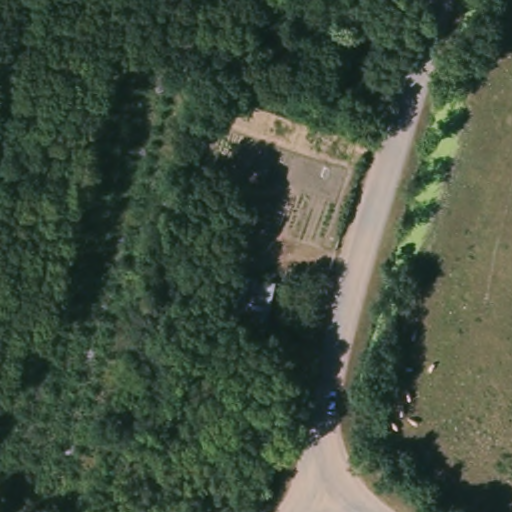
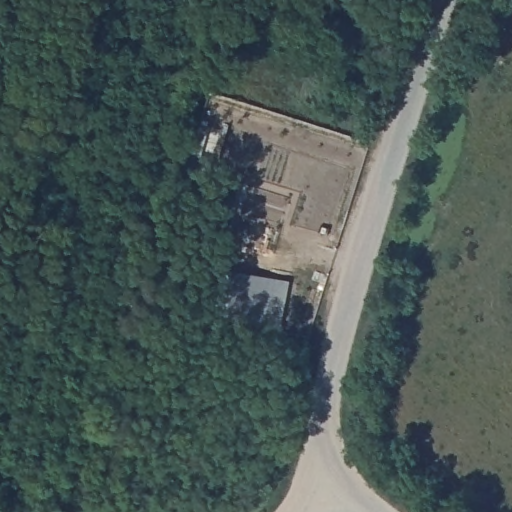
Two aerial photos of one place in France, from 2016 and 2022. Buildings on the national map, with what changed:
unchanged [(220,216),(229,185),(283,199),(273,228),(220,216)]
unchanged [(240,274),(235,300),(261,306),(257,327),(203,316),(211,269),(240,274)]

